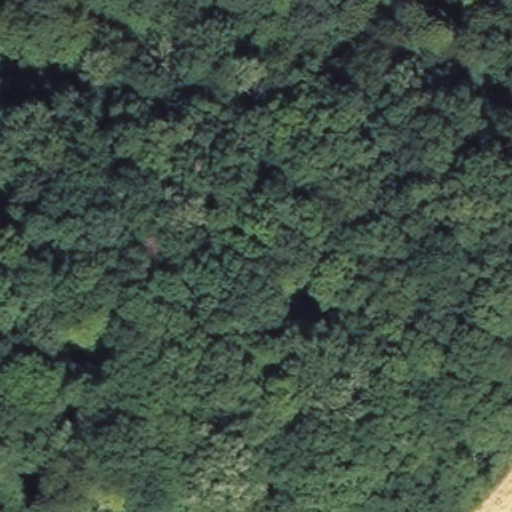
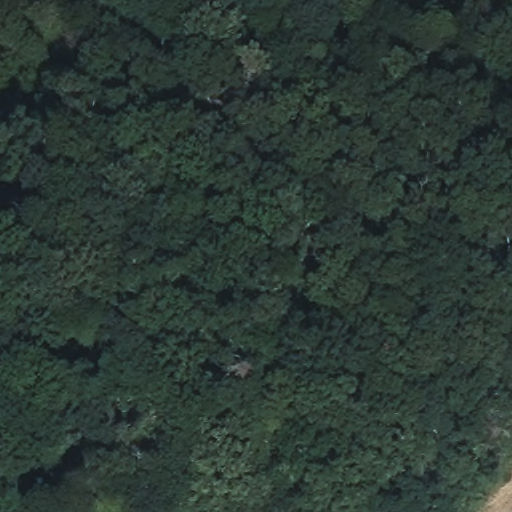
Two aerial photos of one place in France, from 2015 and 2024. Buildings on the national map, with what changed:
[]

